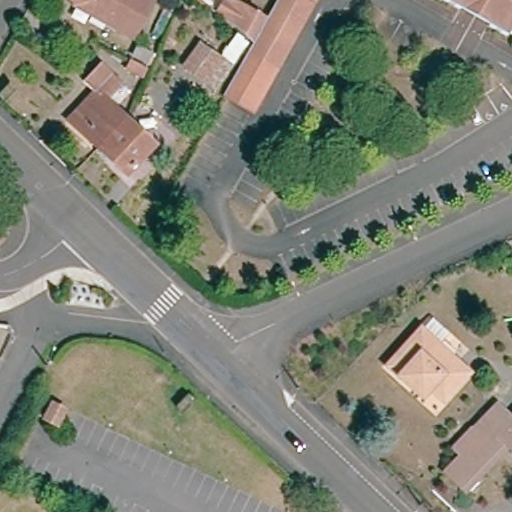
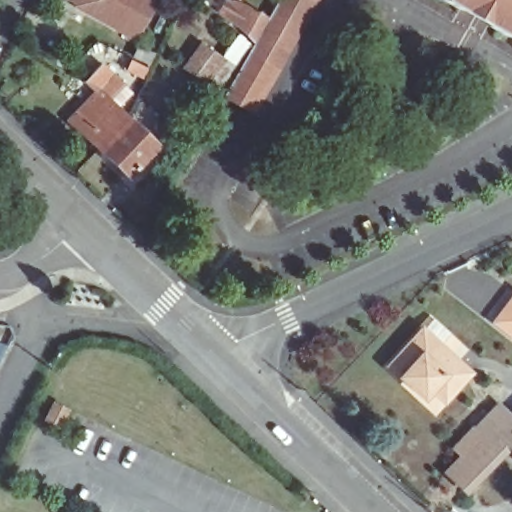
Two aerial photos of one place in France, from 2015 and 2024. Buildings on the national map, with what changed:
unchanged [(132,38),(116,30),(118,27),(107,21),(105,24),(73,8),(74,4),(66,0),(152,0),(132,38)]
unchanged [(225,0),(230,0),(266,20),(277,0),(315,0),(276,67),(248,52),(253,42),(237,25),(220,8),(225,0)]
unchanged [(463,9),(447,0),(468,0),(463,9)]
unchanged [(494,25),(463,9),(468,0),(508,0),(494,25)]
unchanged [(494,25),(508,0),(512,0),(512,35),(494,25)]
unchanged [(201,42),(221,55),(205,80),(185,66),(201,42)]
unchanged [(69,119),(95,93),(80,78),(97,60),(123,85),(111,99),(130,118),(100,148),(69,119)]
unchanged [(130,118),(156,143),(128,175),(100,148),(130,118)]
new [(489,322),(512,294),(512,339),(489,322)]
unchanged [(415,386),(390,362),(424,326),(435,315),(452,331),(442,342),(471,371),(445,399),(433,387),(424,396),(415,386)]
unchanged [(476,429),(512,395),(512,447),(511,445),(492,428),(464,455),(457,448),(476,429)]
unchanged [(55,407),(65,412),(57,426),(46,421),(55,407)]
unchanged [(467,490),(447,472),(464,455),(492,428),(511,445),(467,490)]

